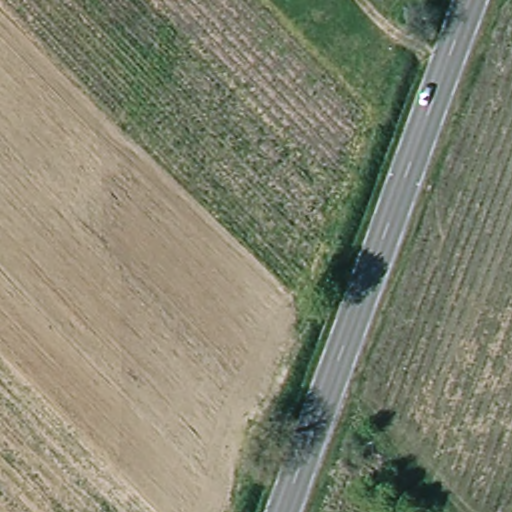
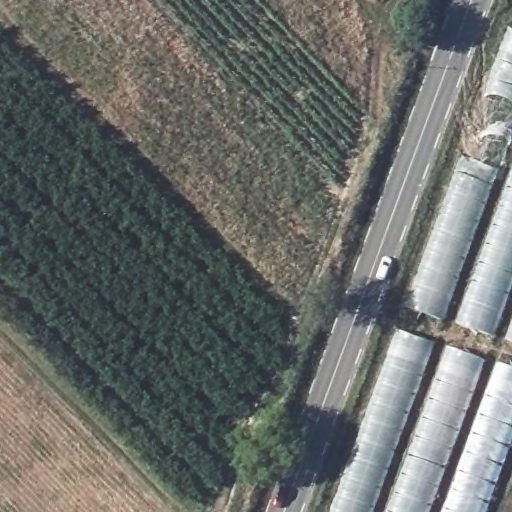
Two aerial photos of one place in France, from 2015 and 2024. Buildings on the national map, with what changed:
new [(512,28),(512,345),(406,308),(510,27),(512,28)]
new [(512,370),(512,443),(487,512),(331,512),(398,330),(512,370)]

